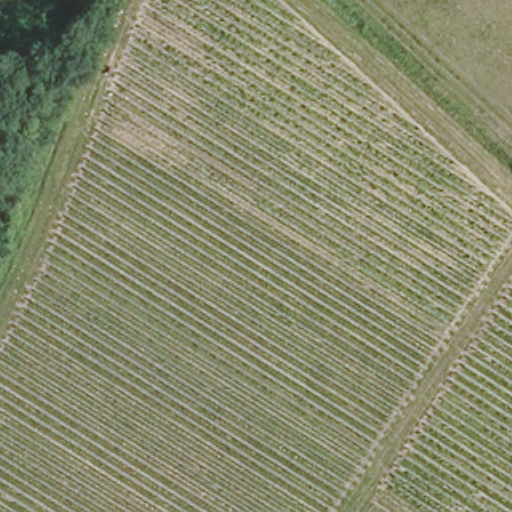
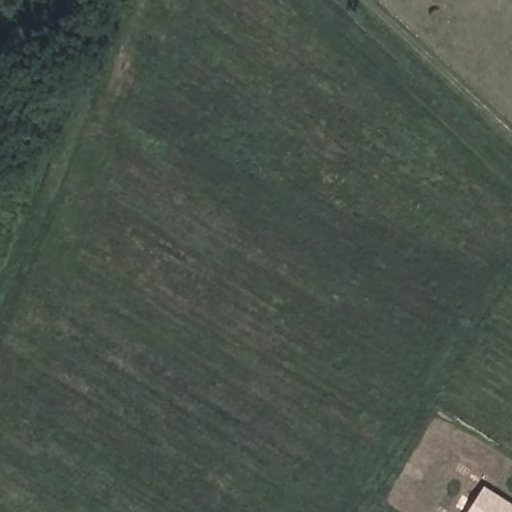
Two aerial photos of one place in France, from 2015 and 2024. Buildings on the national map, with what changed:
new [(483,485),(512,503),(512,512),(467,512),(483,485)]

